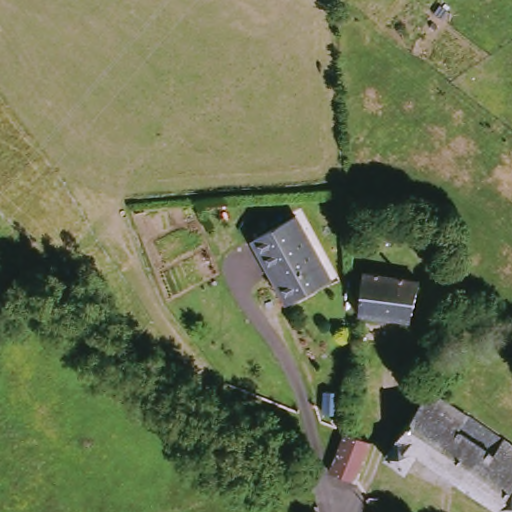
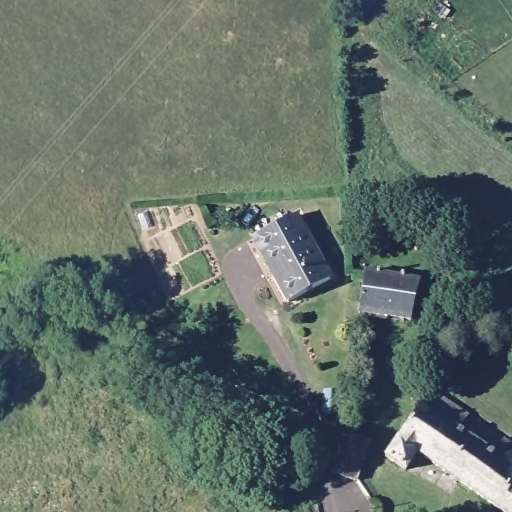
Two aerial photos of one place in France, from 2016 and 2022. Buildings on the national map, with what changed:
unchanged [(330,280),(290,298),(257,235),(297,215),(330,280)]
unchanged [(420,280),(417,314),(364,310),(369,273),(420,280)]
unchanged [(335,411),(324,412),(322,392),(332,390),(335,411)]
unchanged [(407,470),(387,456),(430,391),(512,446),(512,512),(503,512),(419,454),(407,470)]
unchanged [(338,468),(335,463),(348,433),(349,430),(375,440),(362,475),(338,468)]

